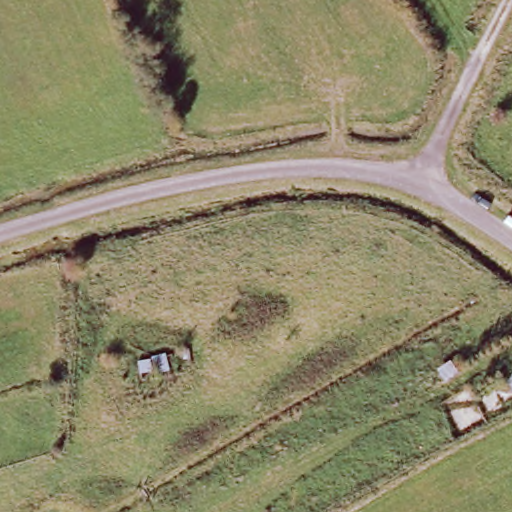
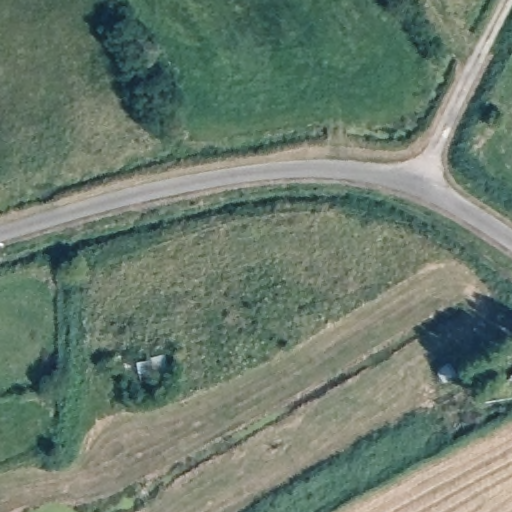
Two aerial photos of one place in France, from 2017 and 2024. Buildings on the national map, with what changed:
unchanged [(512,383),(512,389),(509,386),(512,383)]

